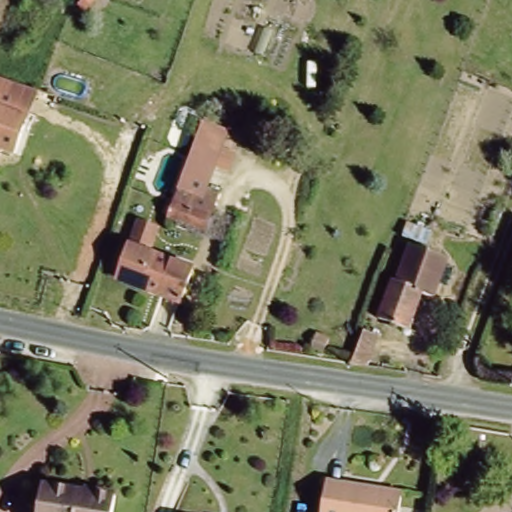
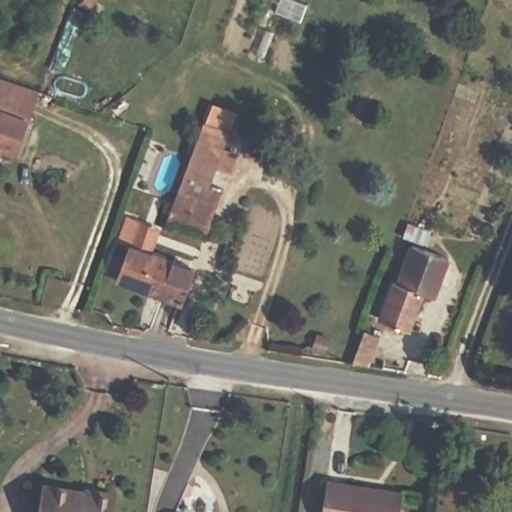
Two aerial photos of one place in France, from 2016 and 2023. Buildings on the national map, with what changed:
unchanged [(19,143),(0,136),(0,98),(31,110),(19,143)]
unchanged [(199,143),(200,139),(235,152),(229,169),(219,166),(210,190),(225,195),(211,232),(172,217),(199,143)]
unchanged [(377,326),(390,287),(395,288),(410,250),(447,263),(432,303),(421,299),(407,337),(377,326)]
unchanged [(153,256),(193,270),(181,303),(141,290),(153,256)]
unchanged [(378,336),(370,359),(384,361),(383,368),(350,363),(364,331),(378,336)]
unchanged [(317,334),(329,338),(324,351),(312,346),(317,334)]
unchanged [(397,492),(395,512),(317,512),(322,481),(397,492)]
unchanged [(79,512),(45,512),(47,487),(83,491),(79,512)]
unchanged [(119,494),(117,512),(79,512),(83,491),(119,494)]

